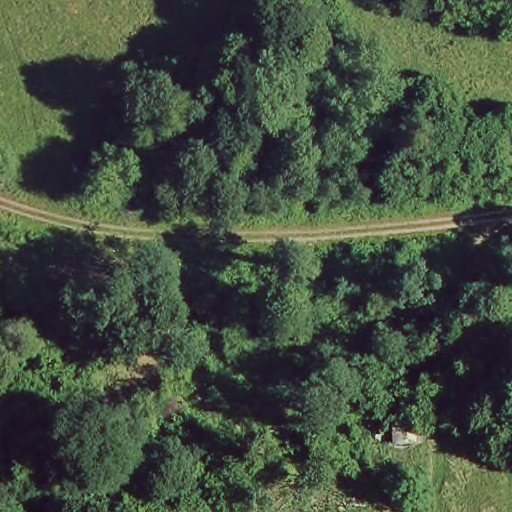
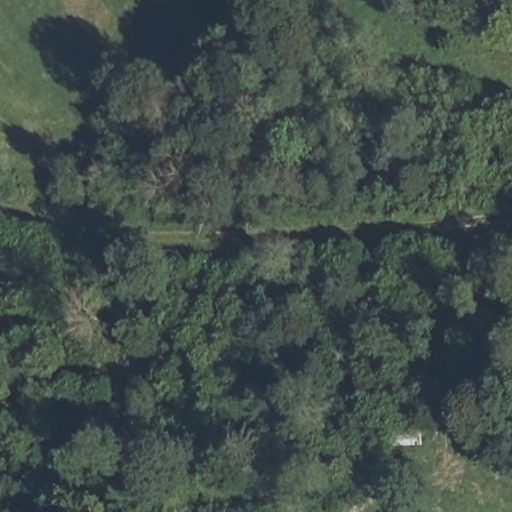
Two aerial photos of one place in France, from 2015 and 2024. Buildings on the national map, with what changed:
unchanged [(426,447),(399,449),(399,423),(424,424),(426,447)]

